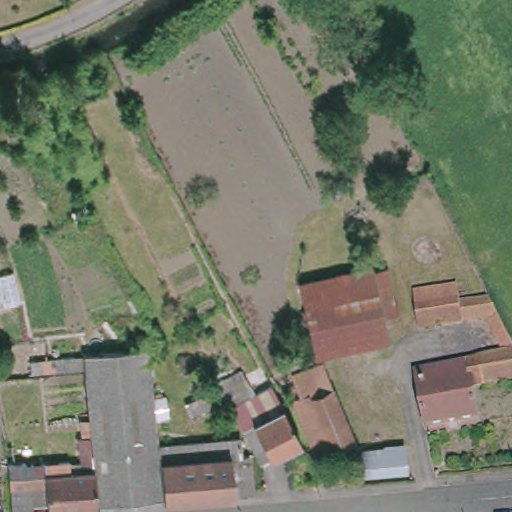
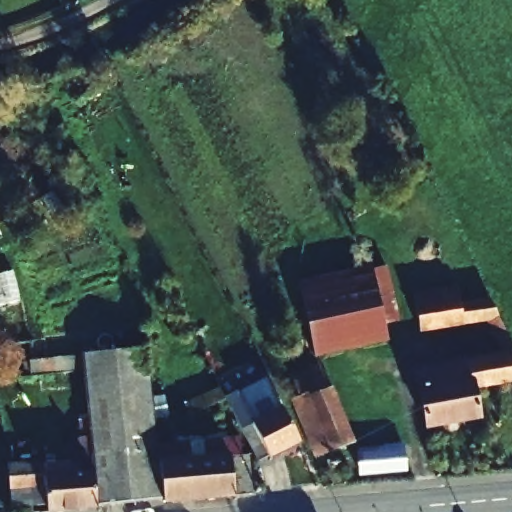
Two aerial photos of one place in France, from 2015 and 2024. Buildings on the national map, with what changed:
unchanged [(367,289),(378,287),(387,334),(315,348),(308,299),(367,289)]
unchanged [(512,388),(481,393),(485,424),(430,433),(421,378),(507,364),(489,328),(423,339),(417,299),(459,293),(462,309),(492,304),(512,340),(512,388)]
unchanged [(148,339),(160,463),(163,502),(127,504),(124,468),(93,470),(81,344),(148,339)]
unchanged [(315,368),(355,441),(320,459),(291,408),(297,404),(287,382),(315,368)]
unchanged [(255,400),(233,413),(226,399),(248,388),(255,400)]
unchanged [(285,412),(302,445),(273,463),(270,457),(260,462),(244,432),(285,412)]
unchanged [(248,494),(235,494),(163,502),(160,463),(169,462),(170,449),(196,447),(197,460),(233,458),(246,457),(248,494)]
unchanged [(402,452),(405,477),(362,481),(360,462),(389,461),(388,452),(402,452)]
unchanged [(93,470),(124,468),(127,504),(124,505),(96,508),(93,470)]
unchanged [(10,476),(92,470),(93,470),(96,508),(93,508),(49,512),(47,487),(27,488),(28,496),(33,495),(34,512),(12,512),(10,476)]

